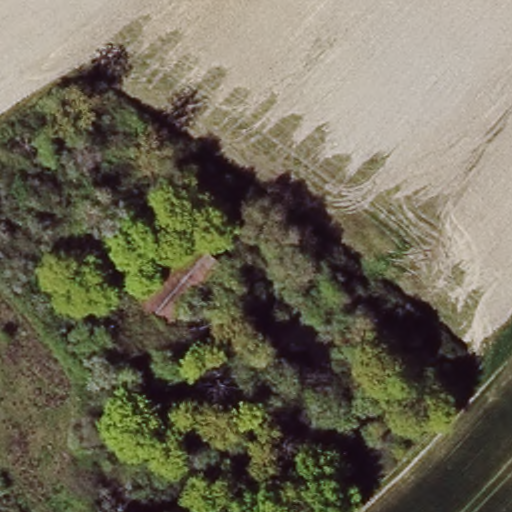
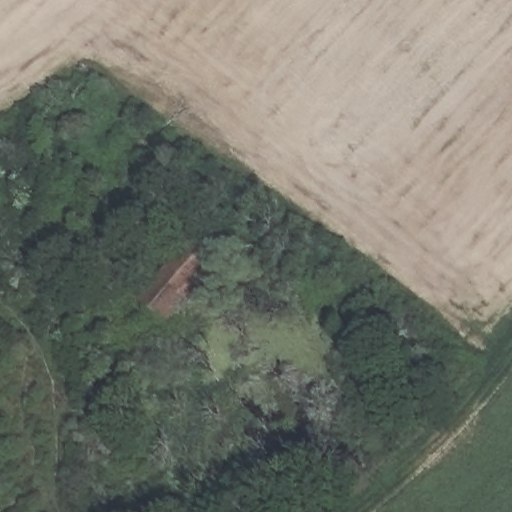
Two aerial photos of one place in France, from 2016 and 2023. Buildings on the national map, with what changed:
unchanged [(206,220),(226,241),(225,246),(151,327),(128,305),(206,220)]

